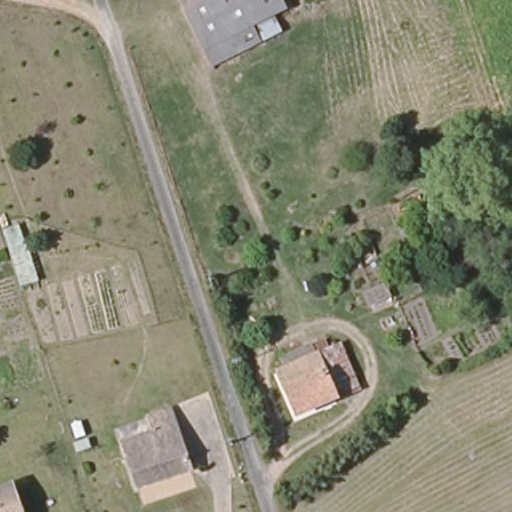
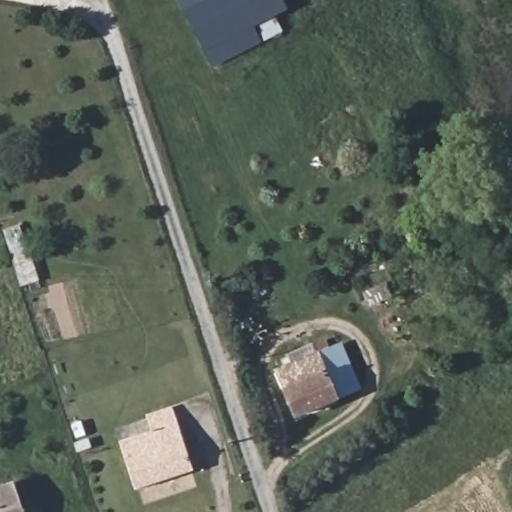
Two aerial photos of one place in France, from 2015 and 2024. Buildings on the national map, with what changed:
unchanged [(281,0),(284,7),(250,25),(257,41),(209,64),(180,0),(281,0)]
unchanged [(392,293),(369,307),(363,298),(386,283),(392,293)]
unchanged [(297,418),(278,377),(292,369),(286,358),(310,346),(315,357),(336,347),(354,390),(297,418)]
unchanged [(121,443),(153,432),(147,416),(174,408),(195,467),(135,487),(121,443)]
unchanged [(0,488),(13,483),(23,512),(0,512),(0,488)]

